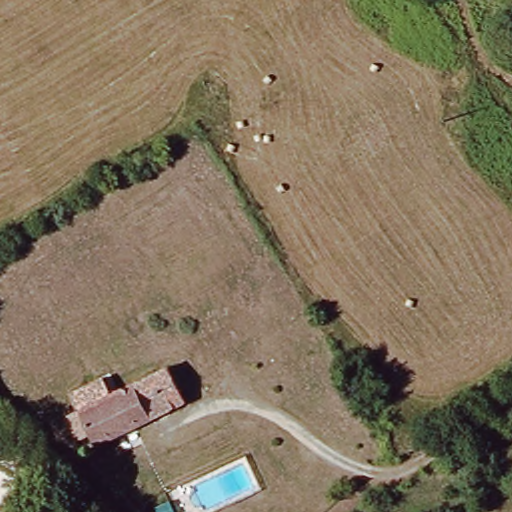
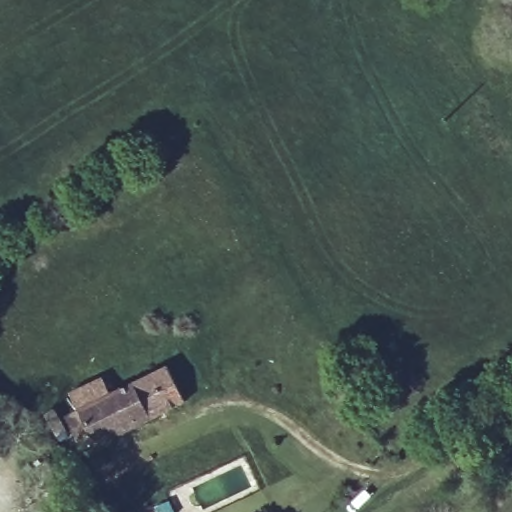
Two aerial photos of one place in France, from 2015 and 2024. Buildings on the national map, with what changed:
unchanged [(190,404),(105,448),(88,417),(174,372),(190,404)]

